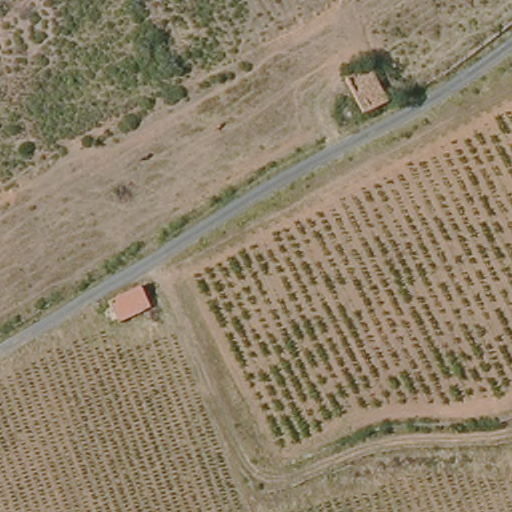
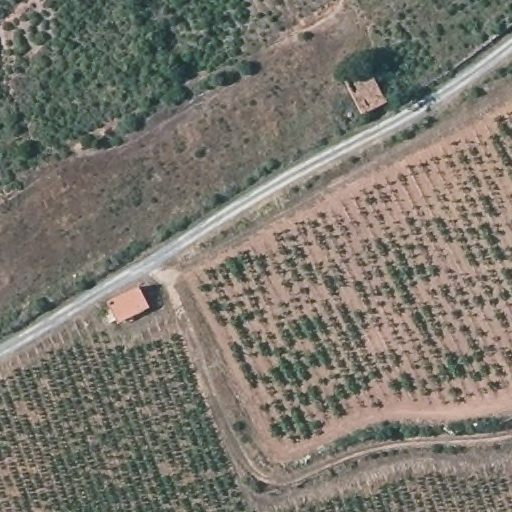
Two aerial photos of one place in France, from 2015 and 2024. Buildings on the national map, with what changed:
unchanged [(385,100),(363,111),(345,77),(360,70),(366,67),(385,100)]
unchanged [(146,302),(118,316),(111,301),(138,288),(146,302)]

